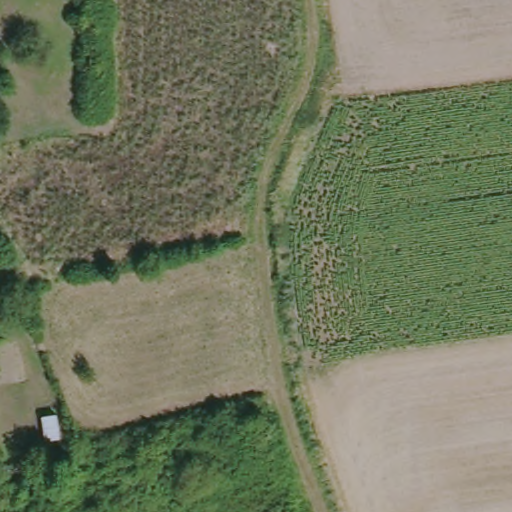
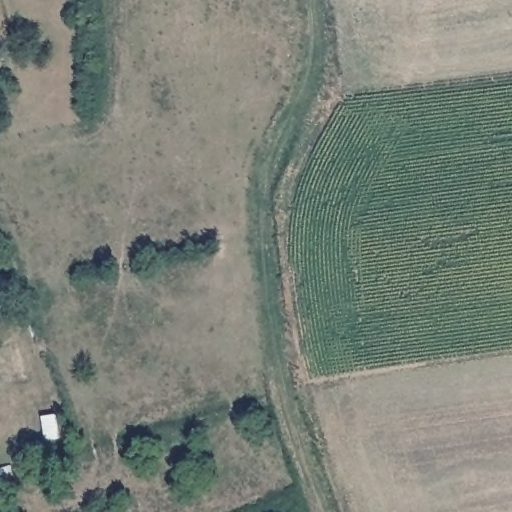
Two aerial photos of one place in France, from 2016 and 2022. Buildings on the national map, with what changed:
unchanged [(62,0),(73,0),(73,2),(63,4),(62,0)]

